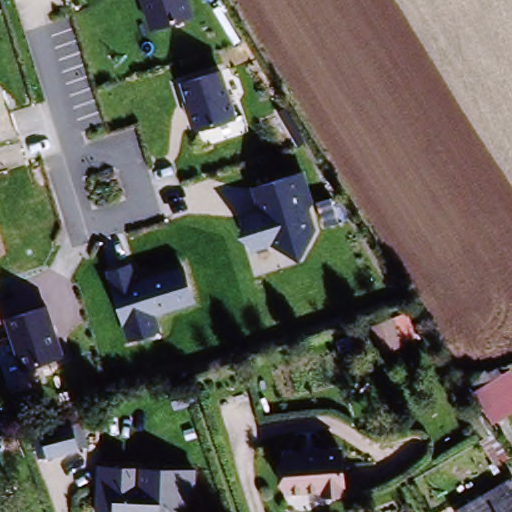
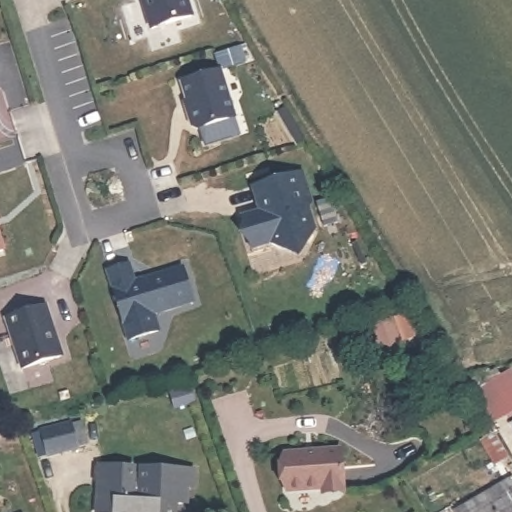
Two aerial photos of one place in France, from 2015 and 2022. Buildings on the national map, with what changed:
unchanged [(151,33),(140,1),(139,0),(188,0),(194,20),(151,33)]
unchanged [(221,75),(236,124),(197,136),(182,82),(221,75)]
unchanged [(300,173),(316,231),(300,267),(270,246),(251,253),(240,240),(244,226),(240,217),(258,212),(252,189),(300,173)]
unchanged [(0,257),(0,237),(6,255),(0,257)]
unchanged [(137,264),(141,278),(183,267),(195,302),(158,315),(164,333),(127,346),(104,275),(137,264)]
unchanged [(47,307),(63,360),(22,371),(7,317),(47,307)]
unchanged [(477,403),(507,384),(511,382),(512,383),(512,414),(493,427),(477,403)]
unchanged [(361,400),(385,388),(404,424),(378,437),(361,400)]
unchanged [(282,486),(278,451),(331,444),(336,479),(282,486)]
unchanged [(197,481),(192,482),(192,497),(184,496),(182,512),(111,512),(112,466),(141,466),(141,473),(154,473),(154,466),(197,466),(197,481)]
unchanged [(493,483),(506,476),(512,486),(512,512),(493,483)]
unchanged [(487,504),(479,491),(493,483),(512,512),(473,512),(487,504)]

